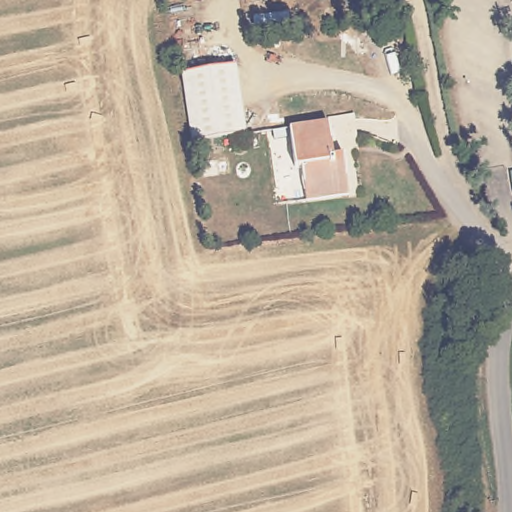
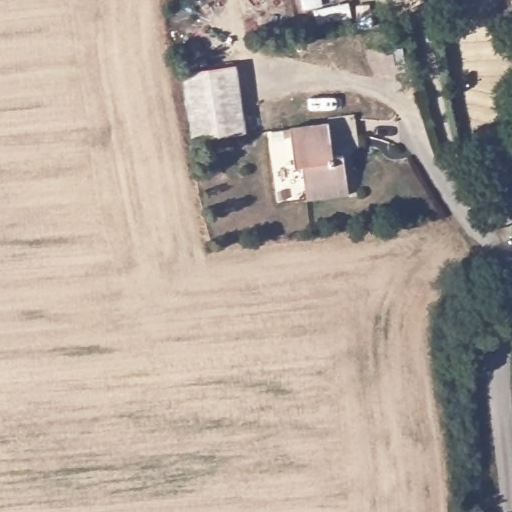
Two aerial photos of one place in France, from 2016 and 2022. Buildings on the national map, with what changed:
unchanged [(194,139),(191,125),(185,85),(182,71),(239,63),(240,77),(246,117),(249,131),(194,139)]
unchanged [(330,117),(336,152),(349,150),(356,190),(311,197),(305,159),(296,160),(290,125),(330,117)]

